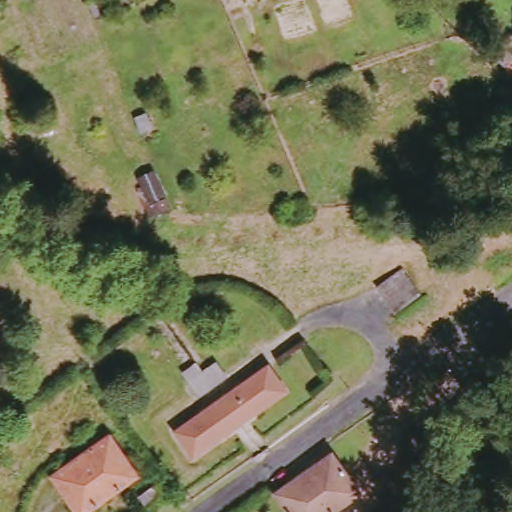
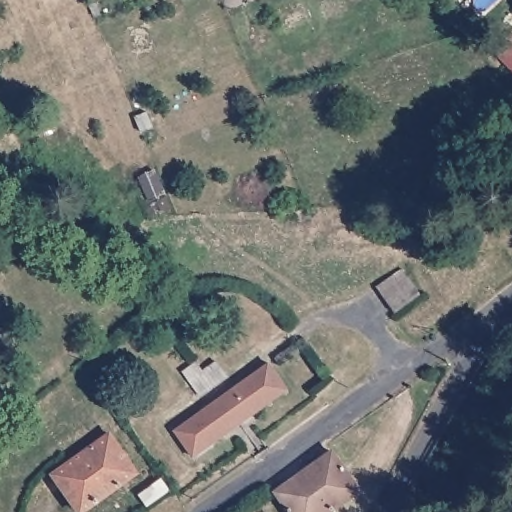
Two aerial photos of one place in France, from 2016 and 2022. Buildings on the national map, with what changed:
unchanged [(211,359),(223,374),(200,390),(191,375),(211,359)]
unchanged [(273,367),(292,393),(198,460),(180,433),(273,367)]
unchanged [(141,477),(89,512),(83,512),(60,475),(115,438),(141,477)]
unchanged [(363,490),(334,512),(294,512),(280,493),(336,454),(363,490)]

